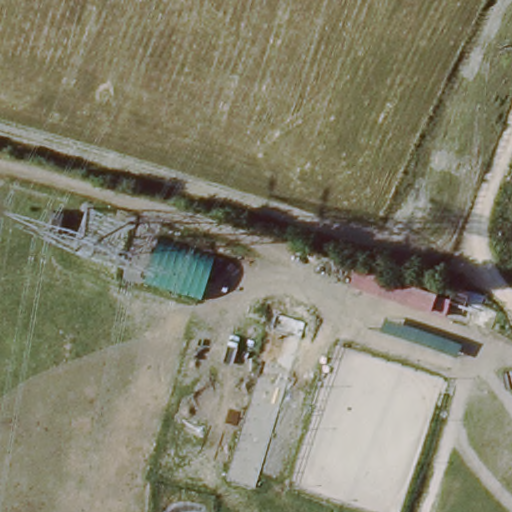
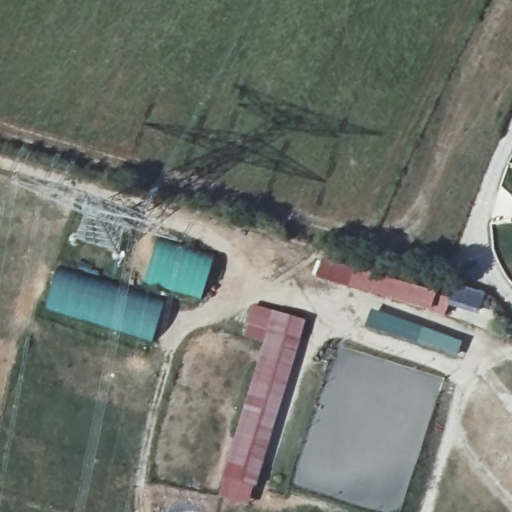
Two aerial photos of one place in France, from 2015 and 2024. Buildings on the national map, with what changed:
unchanged [(146,284),(159,244),(215,260),(202,298),(146,284)]
unchanged [(360,267),(449,296),(444,315),(352,286),(360,267)]
new [(47,308),(58,271),(166,306),(155,342),(47,308)]
new [(366,327),(372,311),(463,343),(458,358),(366,327)]
new [(255,486),(225,477),(273,312),(306,321),(255,486)]
demolished [(283,366),(259,360),(268,328),(291,335),(283,366)]

